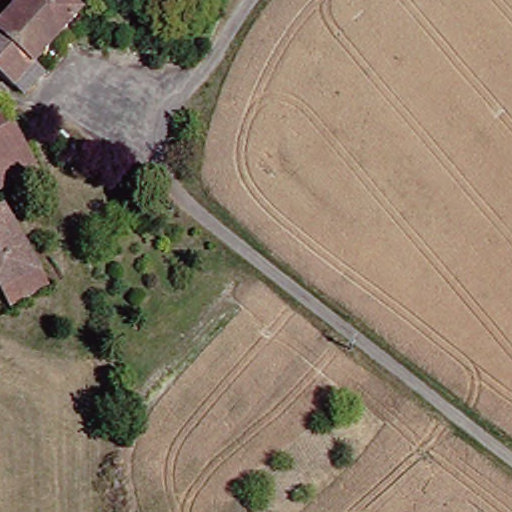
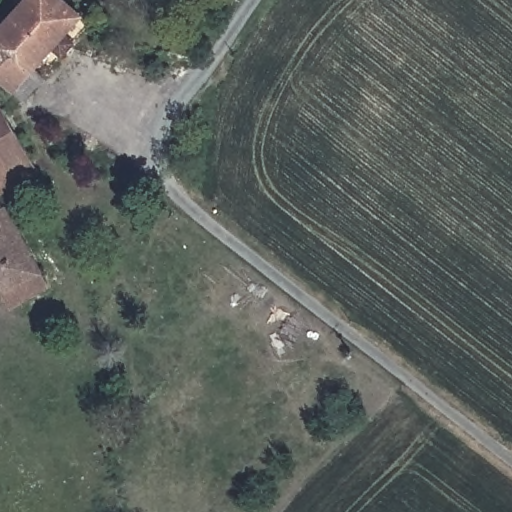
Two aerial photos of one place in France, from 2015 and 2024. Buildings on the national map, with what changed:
unchanged [(44,66),(57,77),(37,99),(12,77),(2,87),(0,85),(0,18),(10,27),(37,0),(77,0),(95,18),(44,66)]
unchanged [(47,266),(59,290),(22,308),(13,291),(0,298),(0,99),(10,93),(53,174),(47,177),(53,185),(49,193),(40,195),(32,184),(5,201),(9,211),(17,206),(47,266)]

